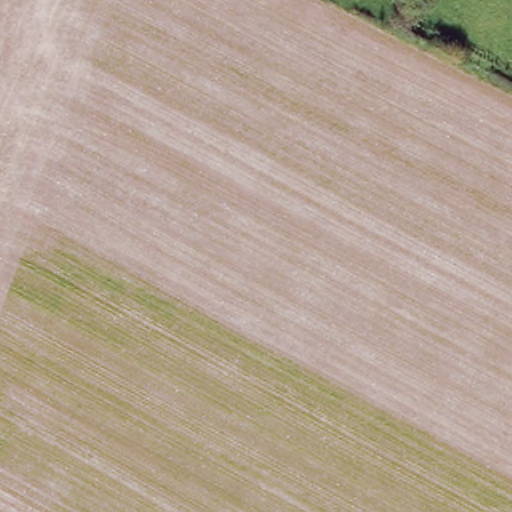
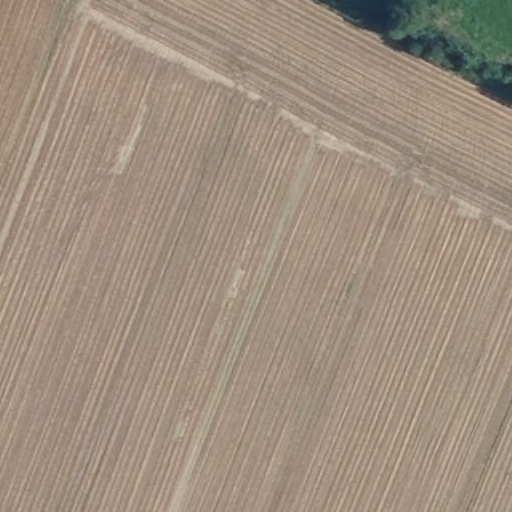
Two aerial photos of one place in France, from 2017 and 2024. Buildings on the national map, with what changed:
[]

